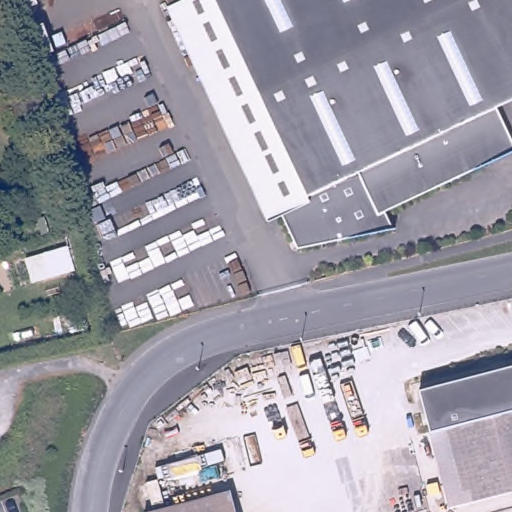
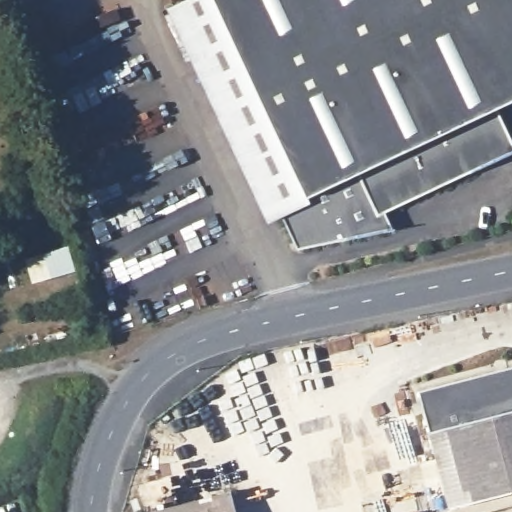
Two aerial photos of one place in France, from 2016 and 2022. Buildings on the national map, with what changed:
unchanged [(390,236),(298,254),(279,215),(266,221),(167,13),(193,0),(512,0),(512,106),(500,111),(512,137),(512,161),(382,220),(390,236)]
unchanged [(43,217),(48,232),(40,234),(36,219),(43,217)]
unchanged [(445,431),(429,435),(418,393),(512,368),(512,496),(466,508),(445,431)]
unchanged [(231,491),(237,512),(154,512),(231,491)]

